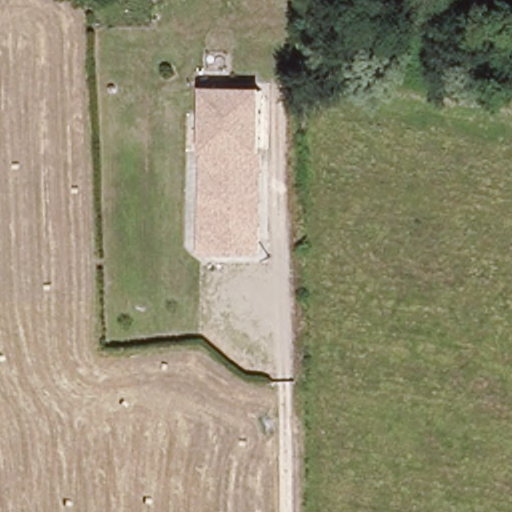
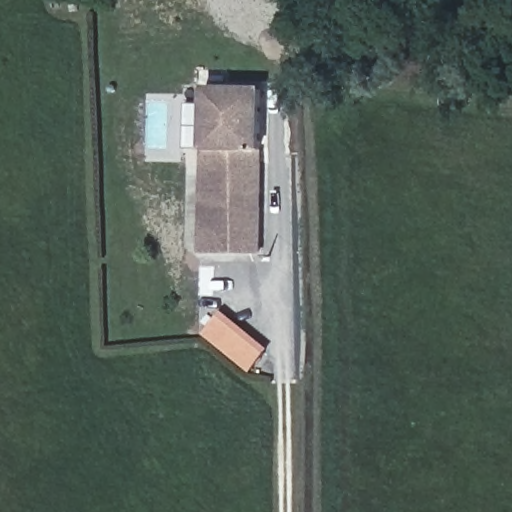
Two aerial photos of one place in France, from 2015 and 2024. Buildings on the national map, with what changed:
unchanged [(262,256),(200,256),(199,90),(261,90),(262,256)]
new [(250,373),(202,336),(221,310),(271,348),(250,373)]

